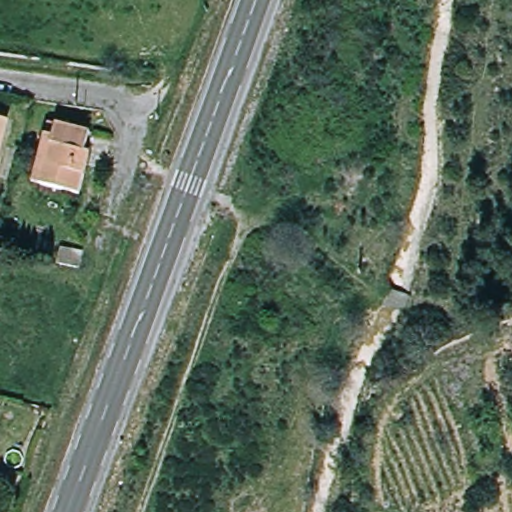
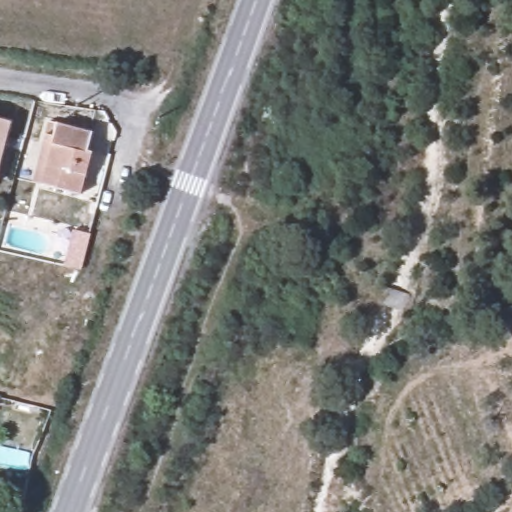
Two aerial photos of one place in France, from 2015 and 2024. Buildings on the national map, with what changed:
unchanged [(0,157),(0,123),(8,125),(0,157)]
unchanged [(83,151),(89,152),(80,192),(40,184),(55,124),(88,131),(83,151)]
unchanged [(62,245),(86,250),(82,268),(58,263),(62,245)]

